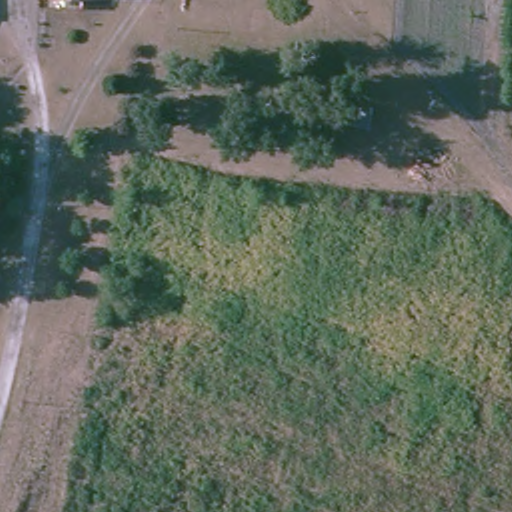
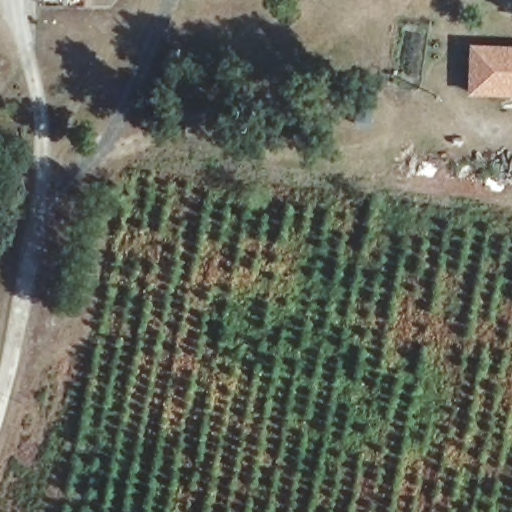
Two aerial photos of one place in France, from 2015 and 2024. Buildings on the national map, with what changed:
new [(512,47),(512,92),(470,90),(472,45),(512,47)]

